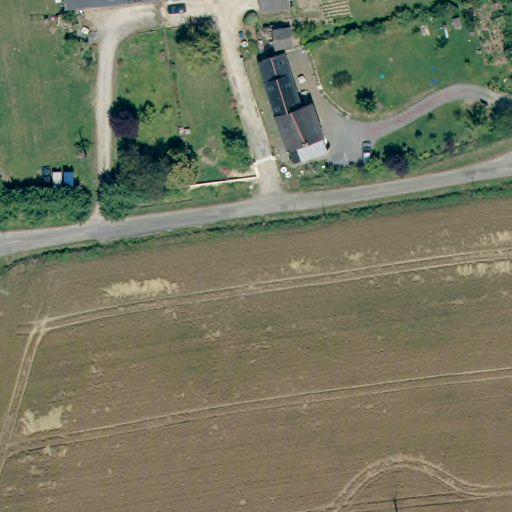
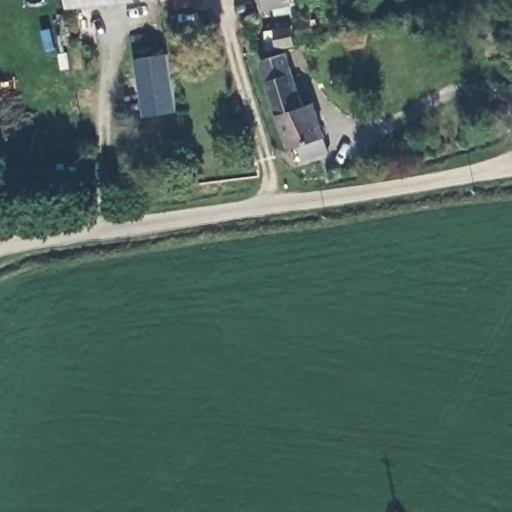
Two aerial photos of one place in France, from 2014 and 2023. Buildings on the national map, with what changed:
unchanged [(71,4),(70,0),(107,0),(71,4)]
unchanged [(293,5),(265,8),(264,0),(292,0),(293,5)]
unchanged [(293,44),(276,46),(275,27),(291,27),(293,44)]
new [(142,117),(133,59),(153,58),(150,47),(166,44),(167,56),(176,112),(142,117)]
unchanged [(304,157),(300,145),(289,147),(262,59),(285,54),(302,105),(312,102),(325,139),(321,140),(325,152),(304,157)]

